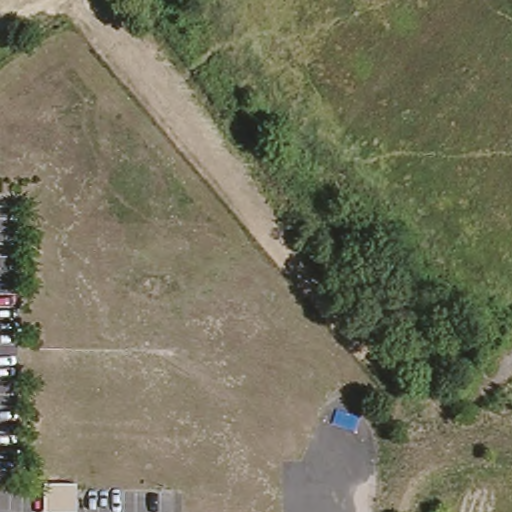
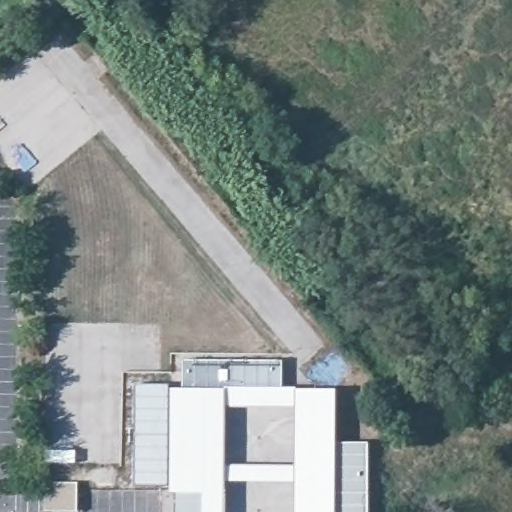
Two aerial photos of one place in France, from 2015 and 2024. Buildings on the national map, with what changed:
new [(336,390),(336,444),(369,442),(369,512),(294,512),(294,483),(226,483),(225,512),(177,512),(178,493),(171,494),(170,388),(184,389),(183,360),(282,362),(283,388),(336,390)]
new [(170,384),(170,388),(171,486),(134,486),(134,385),(170,384)]
demolished [(65,467),(66,494),(36,495),(35,468),(65,467)]
new [(72,483),(73,510),(43,511),(43,484),(72,483)]

